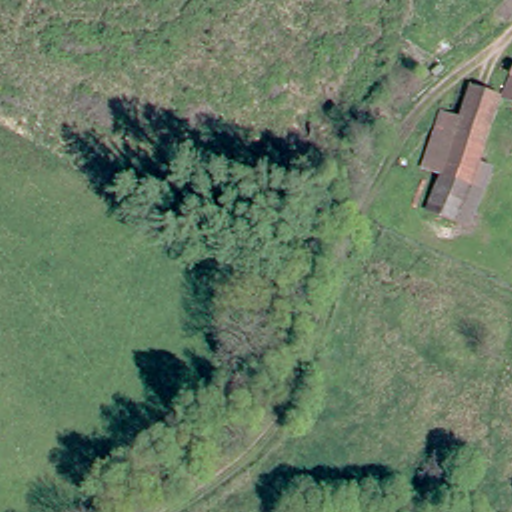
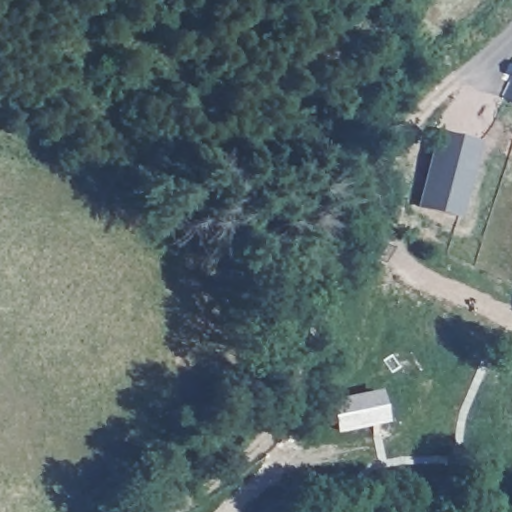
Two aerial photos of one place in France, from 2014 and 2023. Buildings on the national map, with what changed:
unchanged [(497,105),(509,84),(512,78),(512,113),(497,105)]
unchanged [(431,198),(443,175),(421,165),(437,108),(456,113),(466,83),(496,92),(477,159),(495,163),(475,213),(431,198)]
new [(365,398),(378,395),(383,420),(370,423),(370,425),(337,431),(331,404),(365,397),(365,398)]

